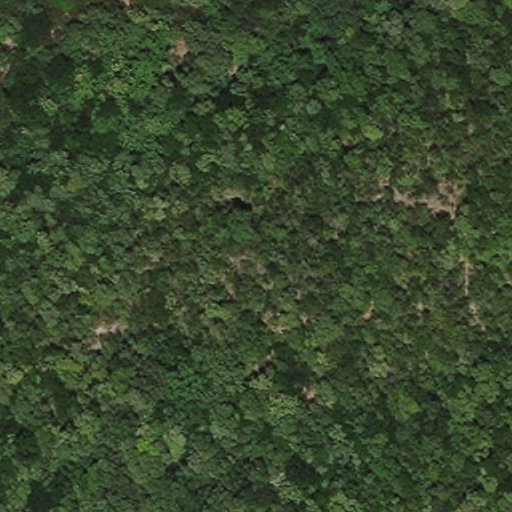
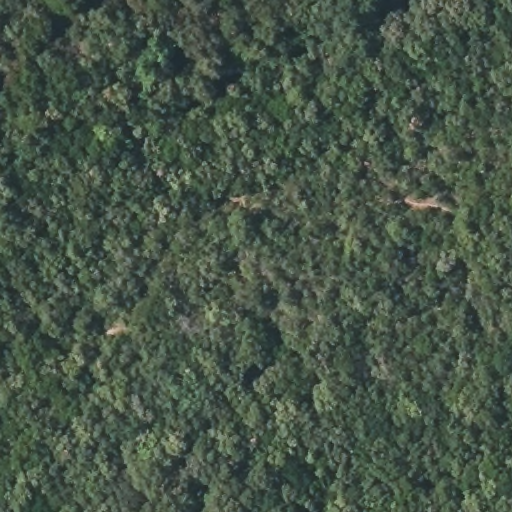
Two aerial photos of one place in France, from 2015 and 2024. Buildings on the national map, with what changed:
unchanged [(341,428),(309,433),(304,411),(336,406),(341,428)]

